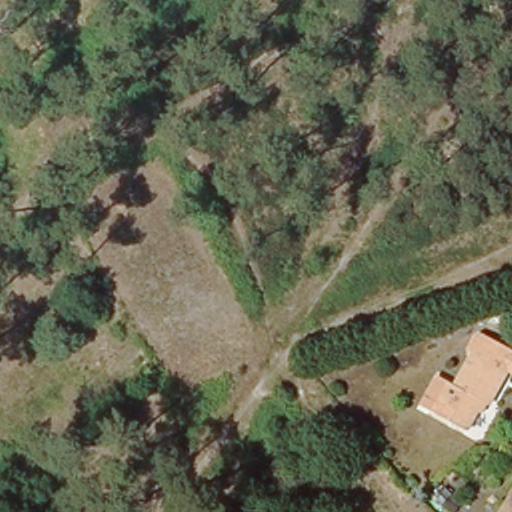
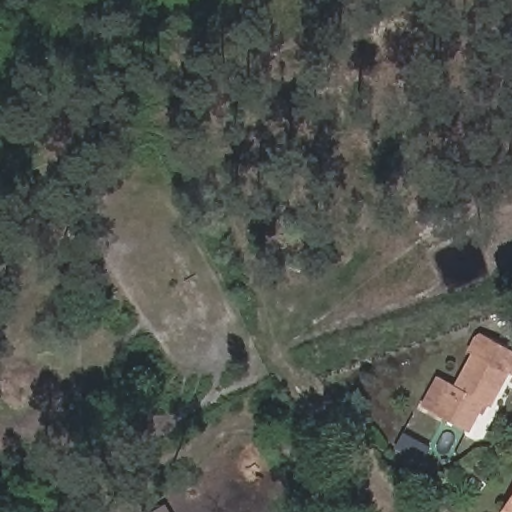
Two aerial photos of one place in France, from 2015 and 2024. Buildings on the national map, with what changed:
unchanged [(512,348),(512,370),(508,368),(488,402),(482,399),(466,426),(430,408),(447,379),(452,381),(470,348),(465,345),(474,329),(512,348)]
unchanged [(500,505),(512,489),(512,512),(509,512),(500,505)]

